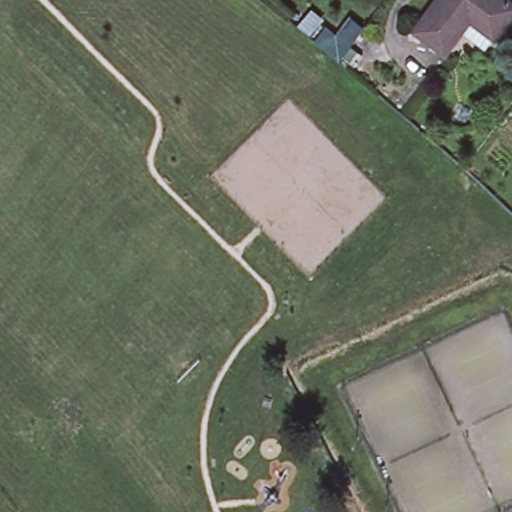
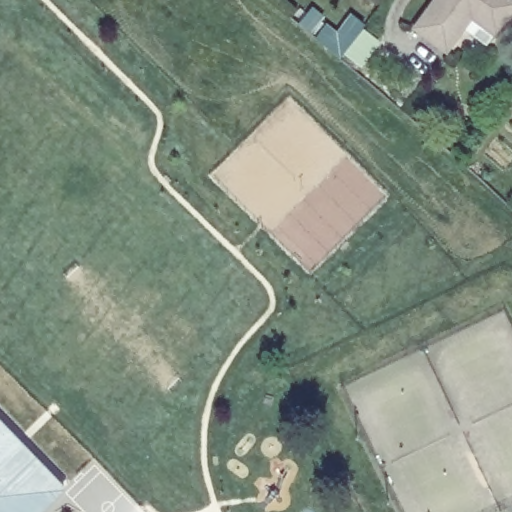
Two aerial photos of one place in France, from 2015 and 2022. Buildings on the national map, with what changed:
unchanged [(462,23),(445,46),(415,24),(433,0),(512,0),(512,4),(485,40),(462,23)]
new [(79,488),(54,512),(0,512),(0,405),(79,488)]

